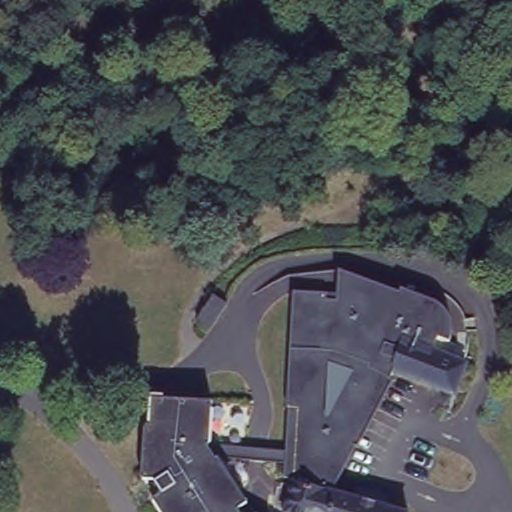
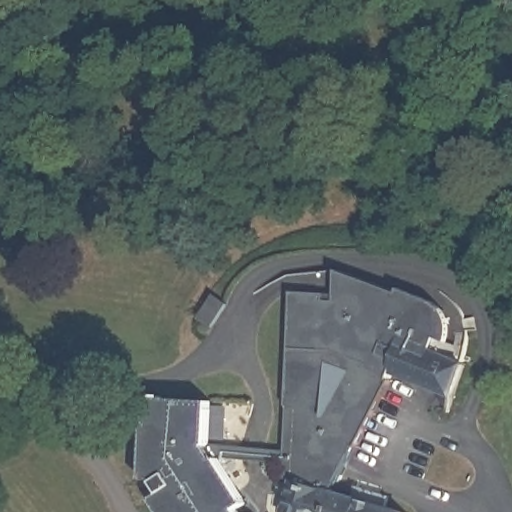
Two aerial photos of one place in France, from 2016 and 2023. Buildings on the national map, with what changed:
unchanged [(440,203),(436,215),(453,220),(448,234),(410,222),(419,196),(440,203)]
unchanged [(347,498),(350,486),(385,496),(380,507),(395,512),(279,512),(286,488),(276,485),(287,399),(296,294),(333,289),(340,271),(418,299),(460,315),(453,348),(472,363),(455,401),(371,366),(366,383),(360,381),(328,492),(347,498)]
unchanged [(147,499),(156,493),(148,480),(137,480),(140,425),(145,426),(147,399),(206,402),(204,445),(201,446),(210,460),(212,458),(241,504),(232,510),(233,512),(156,512),(147,499)]

